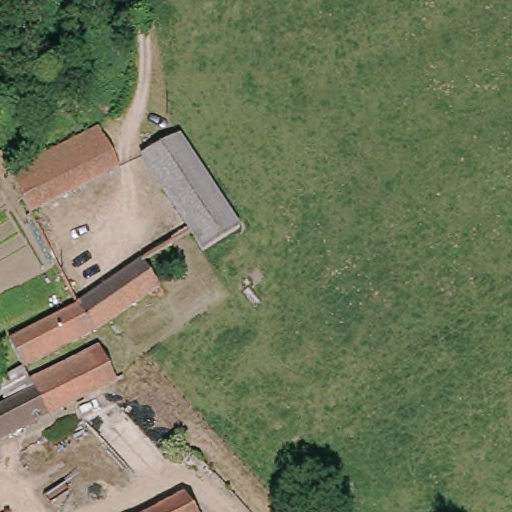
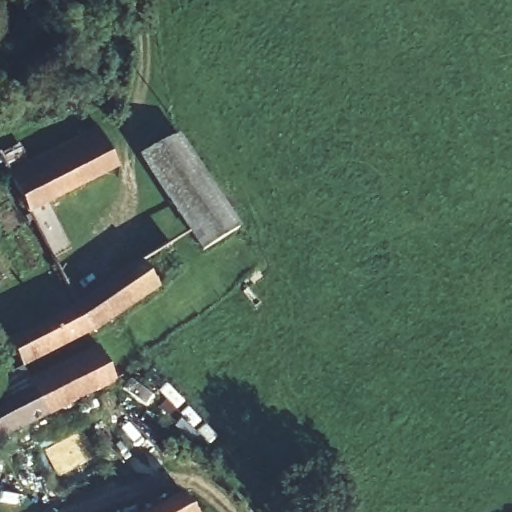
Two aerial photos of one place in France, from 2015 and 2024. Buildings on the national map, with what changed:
unchanged [(2,173),(100,129),(106,144),(9,187),(2,173)]
unchanged [(138,154),(175,135),(236,231),(227,236),(200,251),(138,154)]
unchanged [(106,144),(118,170),(21,213),(9,187),(106,144)]
unchanged [(2,339),(70,304),(142,266),(154,284),(160,294),(19,370),(2,339)]
unchanged [(0,399),(0,380),(19,370),(25,383),(33,379),(80,355),(90,349),(109,384),(110,385),(0,443),(0,409),(3,407),(0,399)]
unchanged [(192,512),(149,512),(182,494),(192,512)]

